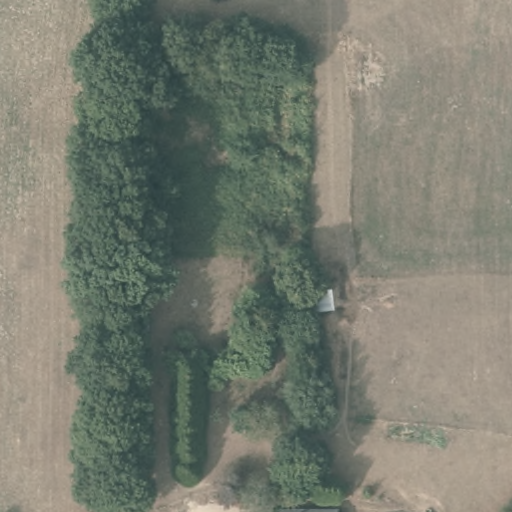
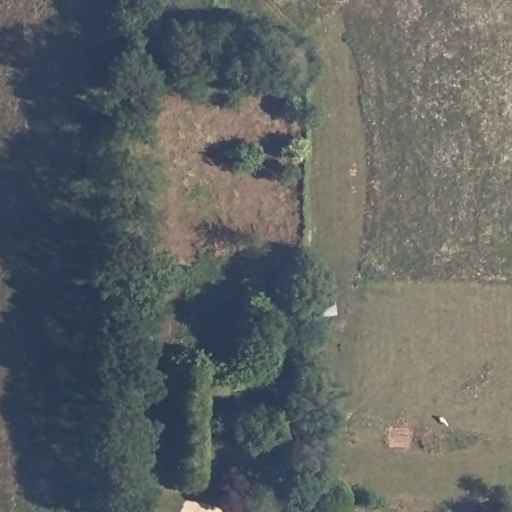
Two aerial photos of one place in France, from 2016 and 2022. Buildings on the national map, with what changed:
unchanged [(277,285),(277,263),(290,264),(290,276),(289,285),(277,285)]
unchanged [(289,511),(317,511),(354,512),(355,512),(289,512),(289,511)]

